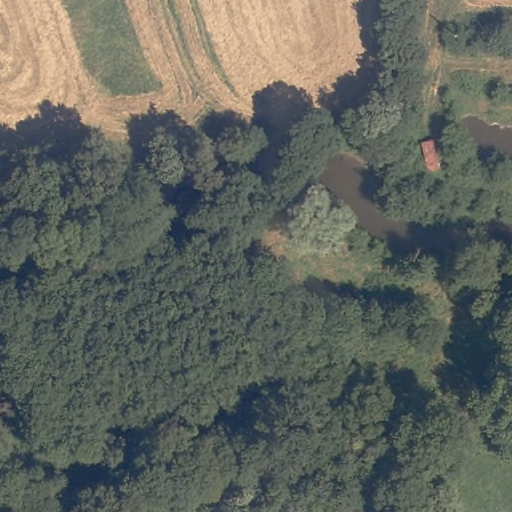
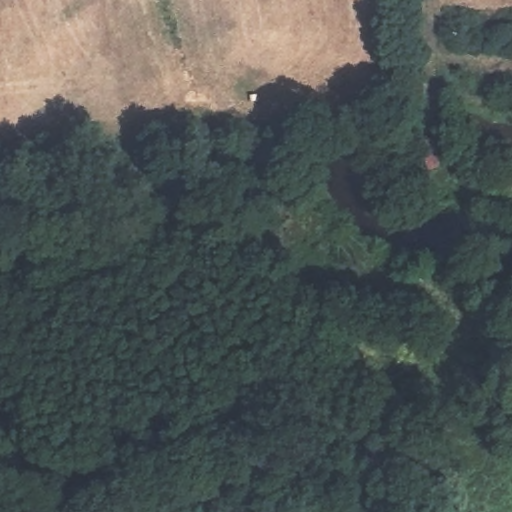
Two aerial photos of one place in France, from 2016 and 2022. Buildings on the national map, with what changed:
unchanged [(426,170),(425,148),(438,146),(441,169),(426,170)]

